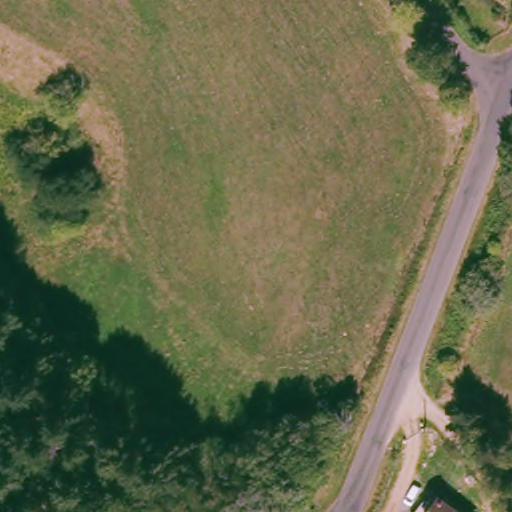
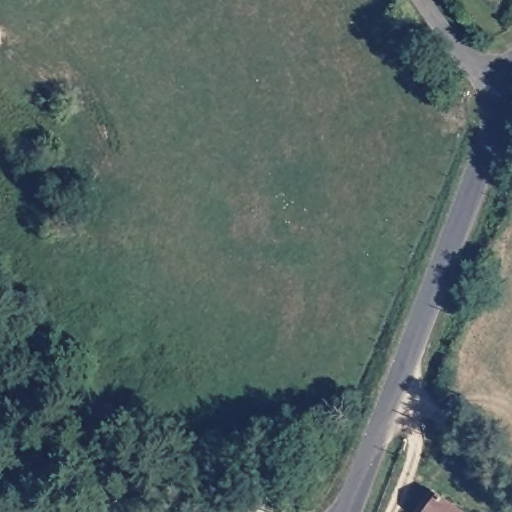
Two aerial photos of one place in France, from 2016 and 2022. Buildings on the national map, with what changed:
unchanged [(461,512),(425,512),(439,494),(461,512)]

